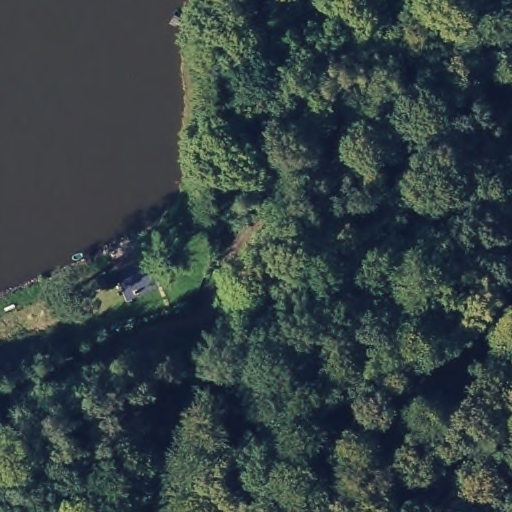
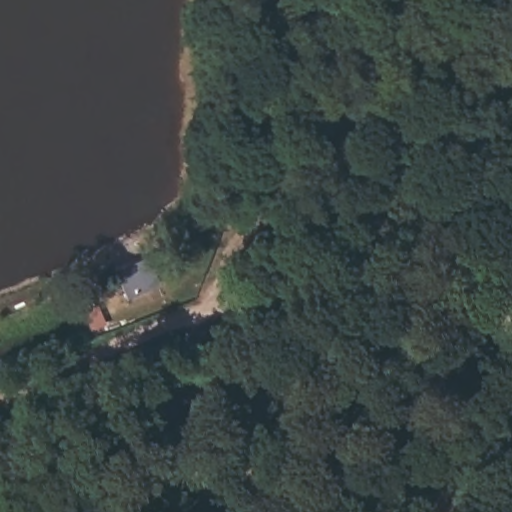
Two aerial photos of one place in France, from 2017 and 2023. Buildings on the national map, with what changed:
unchanged [(150,258),(162,287),(127,300),(115,271),(150,258)]

